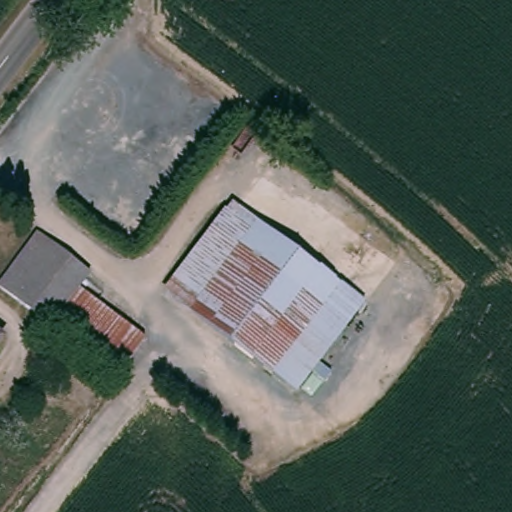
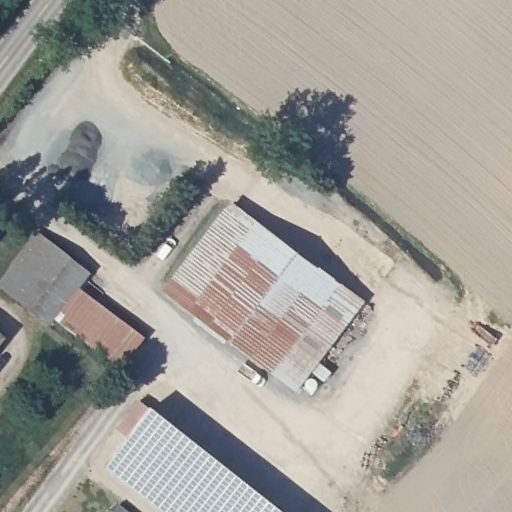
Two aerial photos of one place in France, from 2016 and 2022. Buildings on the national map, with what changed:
unchanged [(367,300),(300,390),(179,296),(169,290),(237,200),(250,211),(367,300)]
unchanged [(120,371),(0,285),(0,281),(41,230),(93,272),(82,290),(149,338),(120,371)]
unchanged [(4,336),(0,342),(0,334),(4,336)]
new [(282,512),(165,512),(107,466),(152,408),(282,512)]

